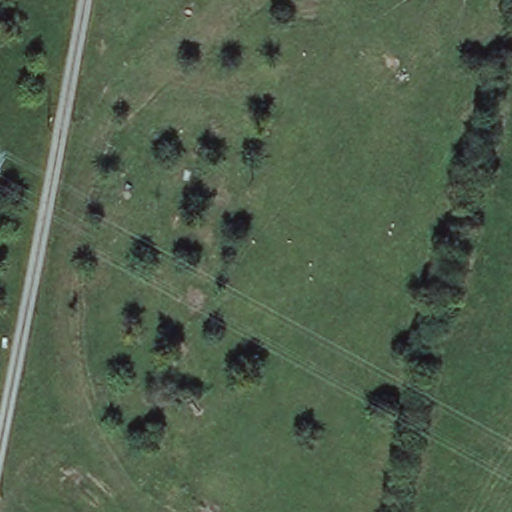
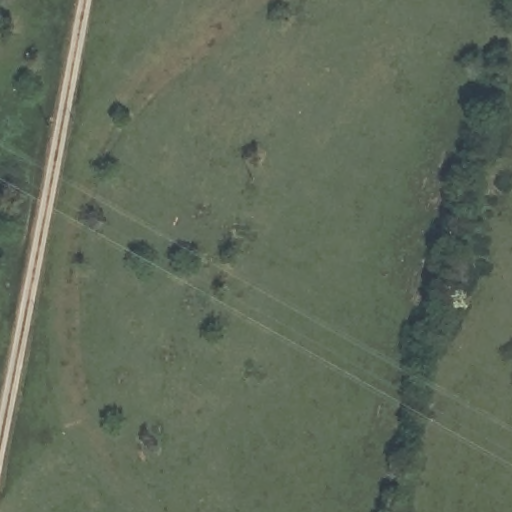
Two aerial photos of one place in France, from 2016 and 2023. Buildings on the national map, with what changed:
[]

